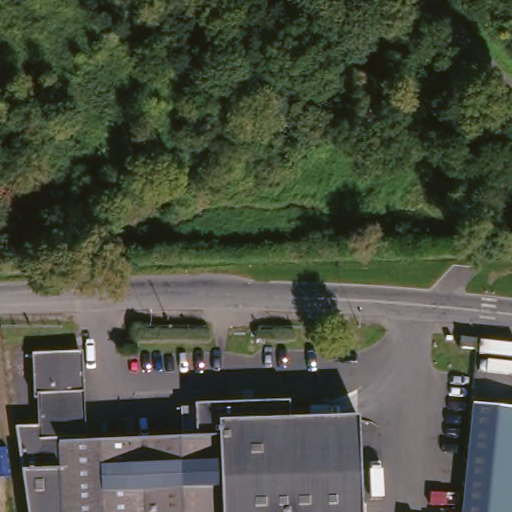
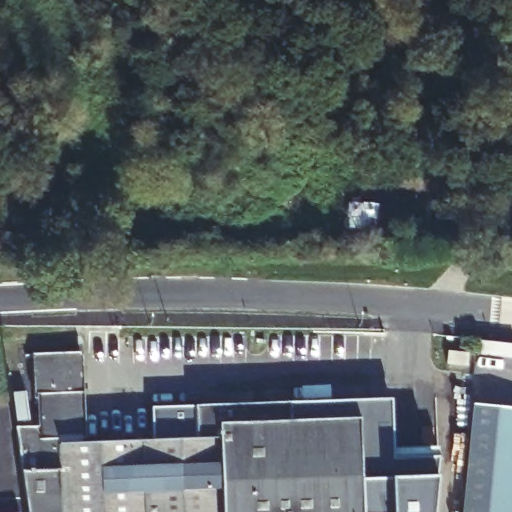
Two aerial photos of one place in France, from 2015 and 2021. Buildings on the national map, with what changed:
unchanged [(66,425),(66,433),(204,433),(204,400),(300,400),(300,419),(337,419),(369,419),(370,512),(32,512),(25,441),(26,441),(28,439),(30,438),(31,436),(31,434),(31,419),(46,419),(46,383),(43,383),(43,342),(89,342),(89,425),(66,425)]
unchanged [(476,398),(510,402),(498,512),(465,512),(469,465),(476,398)]
new [(392,400),(394,449),(440,447),(440,458),(438,477),(434,512),(370,512),(369,419),(337,419),(300,419),(300,404),(392,400)]
unchanged [(510,402),(512,402),(512,512),(498,512),(510,402)]

